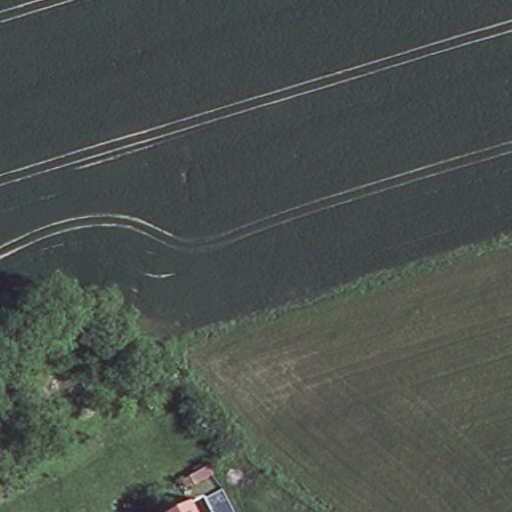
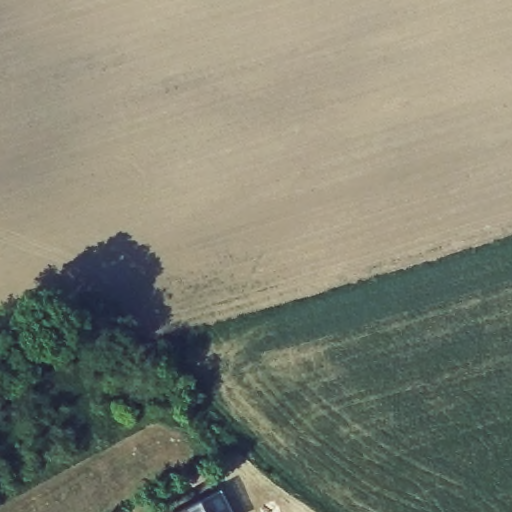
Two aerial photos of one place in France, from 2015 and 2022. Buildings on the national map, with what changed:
unchanged [(181,512),(203,501),(208,512),(181,512)]

